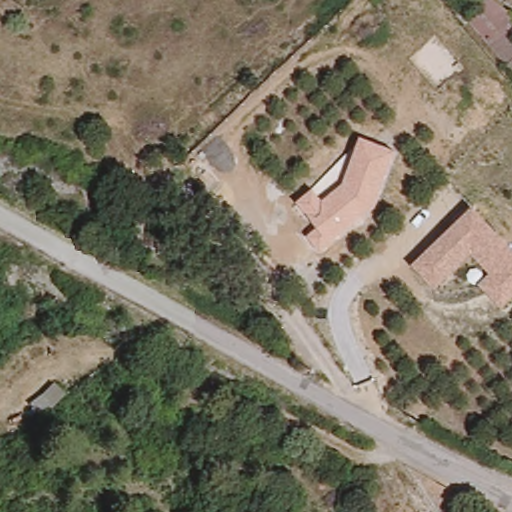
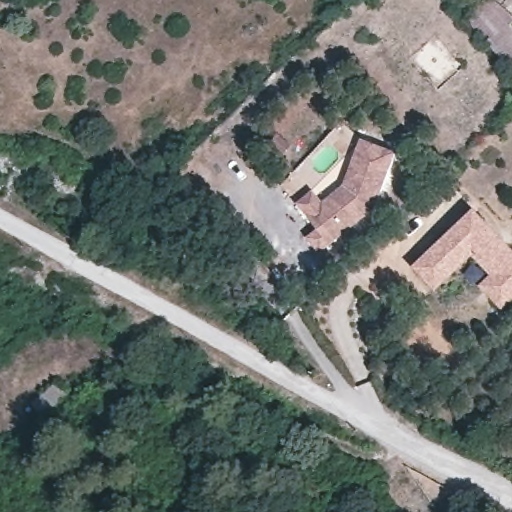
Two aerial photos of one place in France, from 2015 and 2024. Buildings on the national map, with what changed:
unchanged [(469,20),(477,10),(485,0),(496,0),(512,15),(512,25),(512,26),(512,27),(512,72),(469,20)]
unchanged [(308,236),(316,230),(296,204),(314,190),(323,201),(343,185),(361,137),(396,150),(376,210),(320,252),(308,236)]
unchanged [(412,267),(474,209),(512,249),(512,302),(504,310),(479,286),(492,273),(474,254),(436,291),(412,267)]

